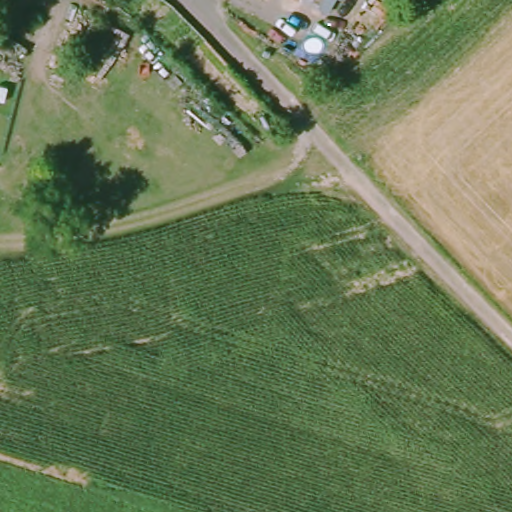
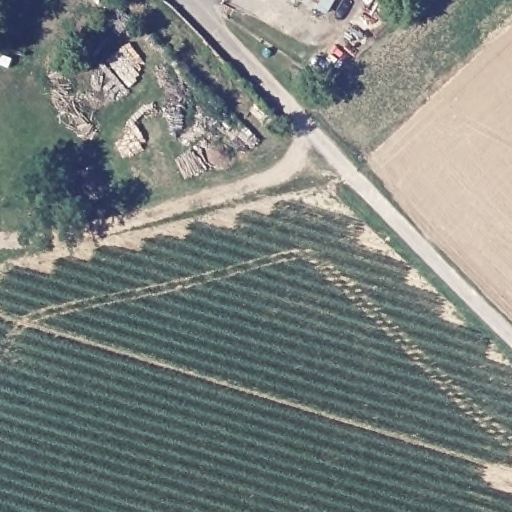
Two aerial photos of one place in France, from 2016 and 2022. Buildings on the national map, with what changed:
unchanged [(21,0),(17,6),(5,0),(21,0)]
unchanged [(291,0),(297,0),(296,3),(291,0)]
unchanged [(331,0),(323,18),(296,3),(297,0),(331,0)]

